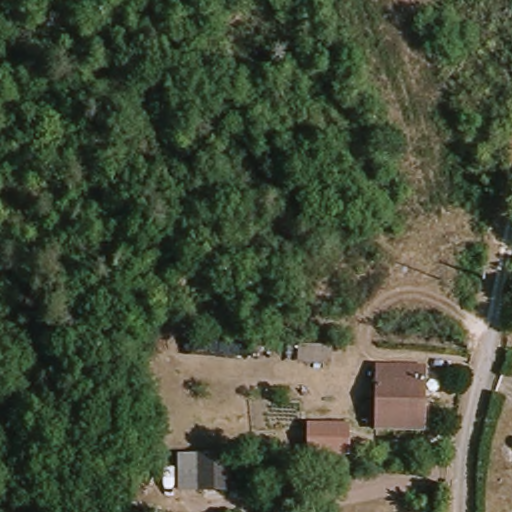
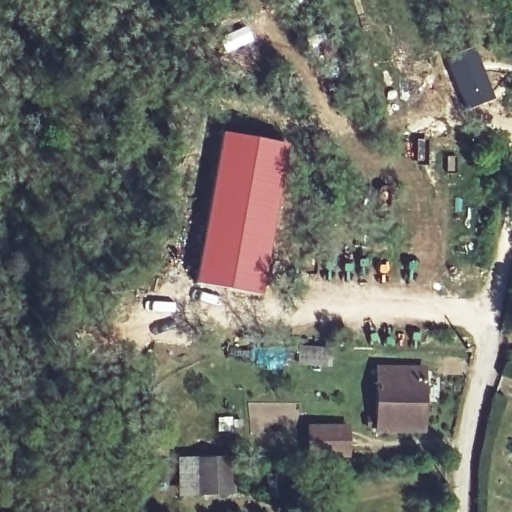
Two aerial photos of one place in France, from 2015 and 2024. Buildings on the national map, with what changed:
new [(219,132),(288,144),(261,296),(193,283),(219,132)]
unchanged [(396,381),(426,382),(421,432),(374,430),(380,372),(397,371),(396,381)]
new [(348,427),(350,456),(310,458),(309,428),(348,427)]
unchanged [(183,494),(180,462),(216,460),(218,492),(183,494)]

